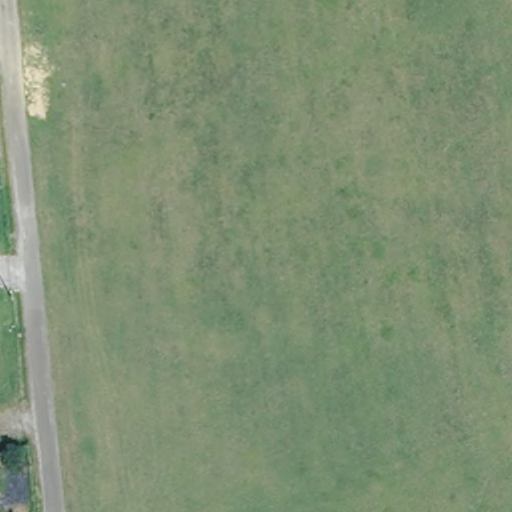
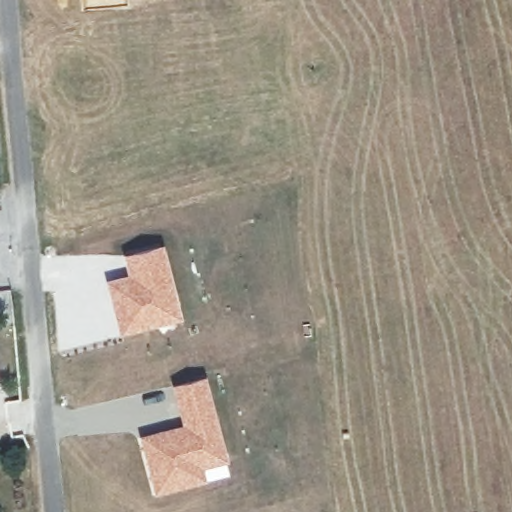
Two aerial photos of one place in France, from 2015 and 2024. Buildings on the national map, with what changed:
new [(127,272),(122,253),(163,242),(182,318),(121,334),(106,278),(127,272)]
new [(182,422),(171,384),(206,374),(229,458),(203,467),(206,478),(155,493),(139,434),(182,422)]

